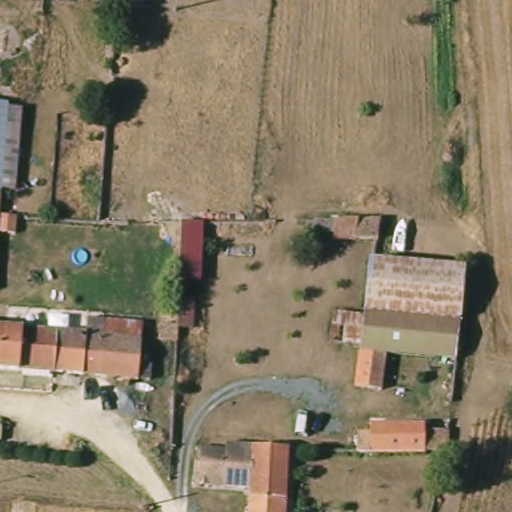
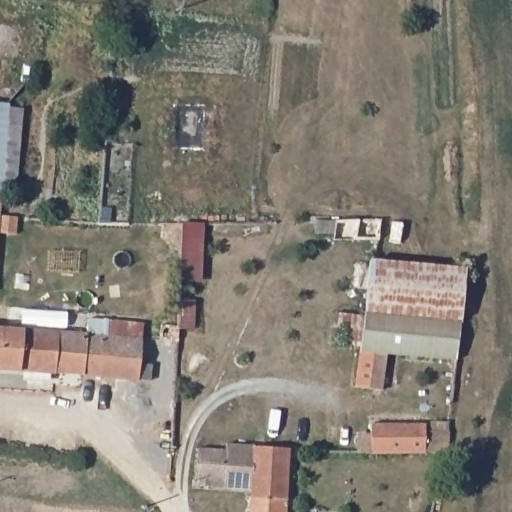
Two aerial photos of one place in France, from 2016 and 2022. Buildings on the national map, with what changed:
unchanged [(0,264),(0,222),(0,105),(14,105),(7,204),(23,205),(22,222),(29,222),(27,242),(1,240),(0,264)]
unchanged [(335,242),(336,223),(377,224),(380,225),(377,245),(335,242)]
unchanged [(466,318),(370,311),(375,260),(473,264),(466,318)]
unchanged [(151,330),(150,344),(149,370),(155,370),(155,386),(34,378),(40,338),(68,340),(71,306),(95,307),(94,325),(115,327),(151,330)]
unchanged [(370,311),(363,350),(331,347),(335,309),(370,311)]
unchanged [(392,352),(389,386),(359,383),(363,350),(370,311),(466,318),(462,358),(392,352)]
unchanged [(164,343),(165,326),(182,327),(181,345),(164,343)]
unchanged [(0,334),(40,338),(34,378),(0,376),(0,334)]
unchanged [(374,431),(430,431),(430,460),(373,460),(374,431)]
unchanged [(199,490),(201,452),(233,455),(234,446),(295,452),(291,512),(253,512),(254,494),(199,490)]

